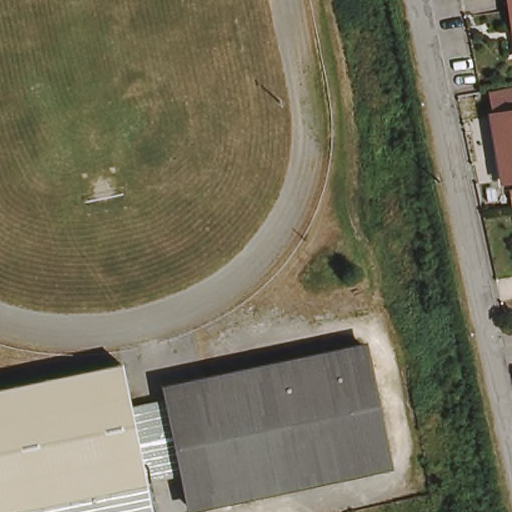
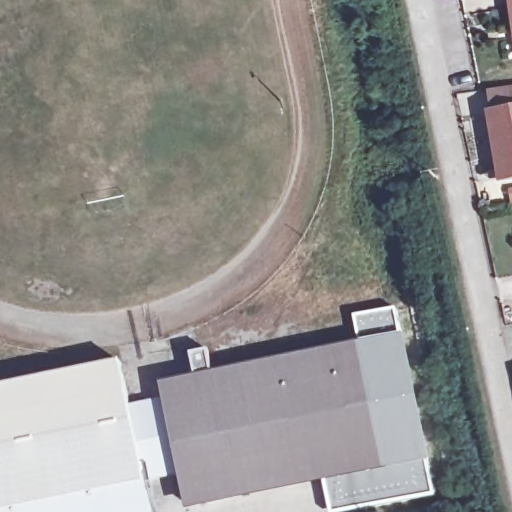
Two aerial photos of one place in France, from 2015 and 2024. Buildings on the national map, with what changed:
unchanged [(508,0),(512,0),(512,36),(508,0)]
unchanged [(508,149),(502,150),(496,115),(512,112),(512,170),(508,149)]
new [(363,344),(356,318),(395,310),(400,334),(404,333),(428,460),(425,461),(433,493),(340,512),(333,512),(325,480),(387,466),(363,344)]
unchanged [(363,344),(387,466),(325,480),(185,511),(179,478),(163,399),(161,387),(363,344)]
unchanged [(131,405),(163,399),(179,478),(145,485),(151,512),(0,512),(0,389),(123,366),(131,405)]

